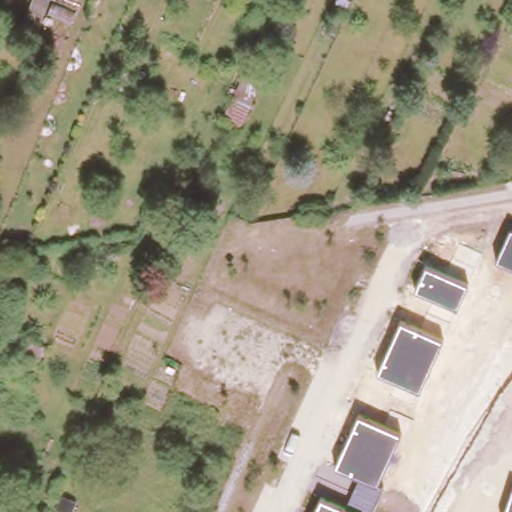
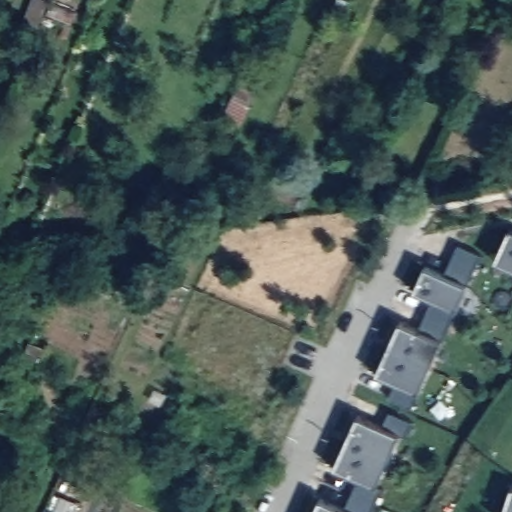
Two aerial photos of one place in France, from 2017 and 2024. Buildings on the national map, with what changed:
unchanged [(23,18),(30,0),(46,0),(38,24),(23,18)]
unchanged [(256,82),(239,121),(222,114),(241,76),(256,82)]
unchanged [(512,228),(512,267),(498,260),(512,228)]
unchanged [(418,292),(427,267),(467,285),(458,307),(418,292)]
unchanged [(379,374),(402,322),(442,341),(420,392),(379,374)]
unchanged [(322,500),(344,509),(359,477),(336,467),(359,417),(401,435),(378,484),(384,488),(373,512),(316,512),(322,500)]
unchanged [(512,512),(505,512),(512,491),(512,512)]

